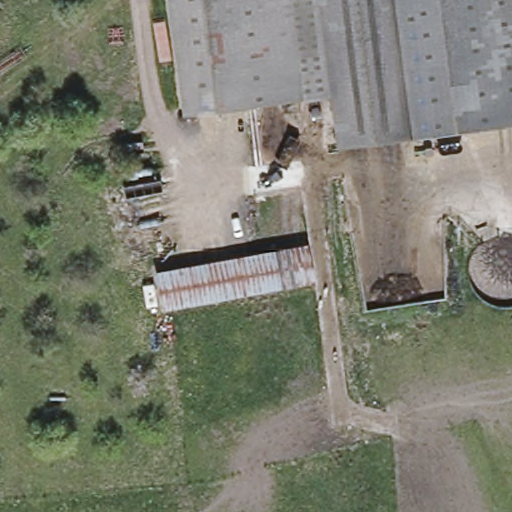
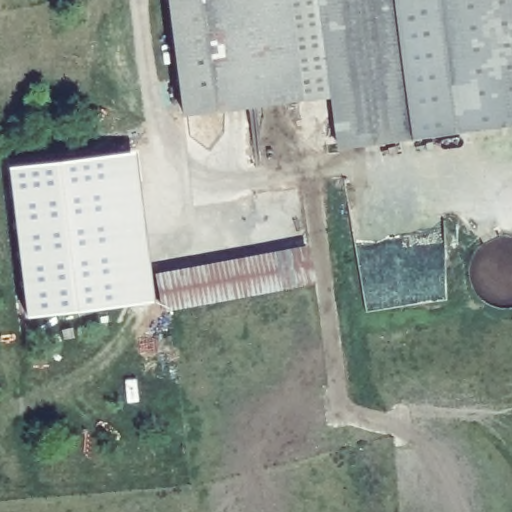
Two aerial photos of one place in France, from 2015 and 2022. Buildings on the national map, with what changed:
unchanged [(299,99),(184,114),(170,0),(286,0),(298,97),(299,99)]
unchanged [(298,97),(286,0),(322,0),(332,91),(298,97)]
unchanged [(512,0),(512,125),(340,146),(332,91),(322,0),(512,0)]
new [(150,273),(158,276),(160,290),(152,289),(153,300),(27,315),(8,165),(135,150),(150,273)]
unchanged [(164,309),(157,272),(306,244),(313,281),(164,309)]

